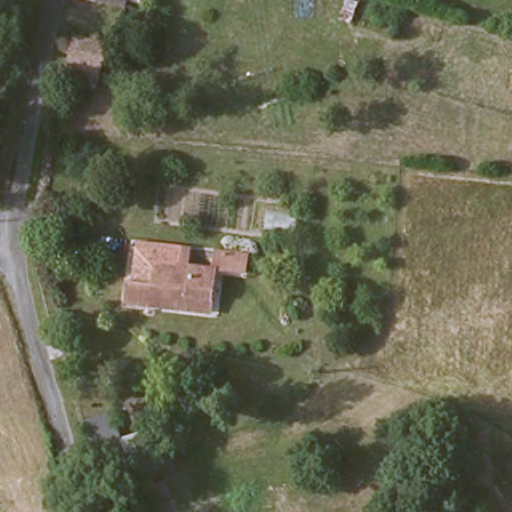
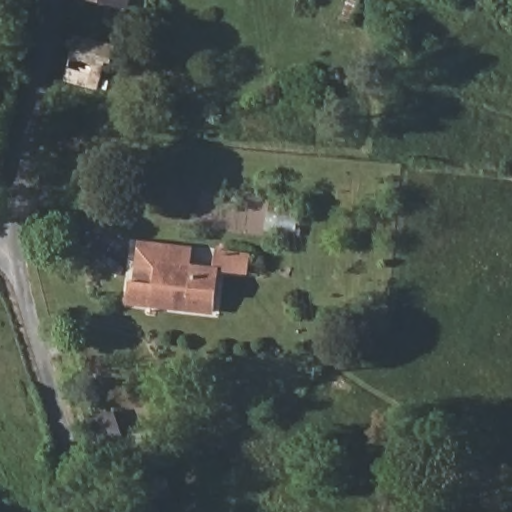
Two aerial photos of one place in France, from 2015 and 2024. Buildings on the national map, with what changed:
unchanged [(128,11),(85,0),(131,0),(128,11)]
unchanged [(61,81),(70,38),(112,47),(110,64),(102,62),(95,88),(61,81)]
unchanged [(132,302),(135,278),(140,278),(143,241),(185,245),(184,263),(212,266),(214,248),(244,252),(243,269),(220,267),(216,311),(132,302)]

